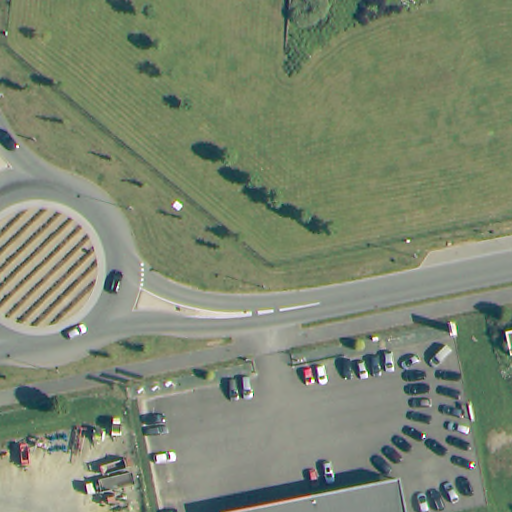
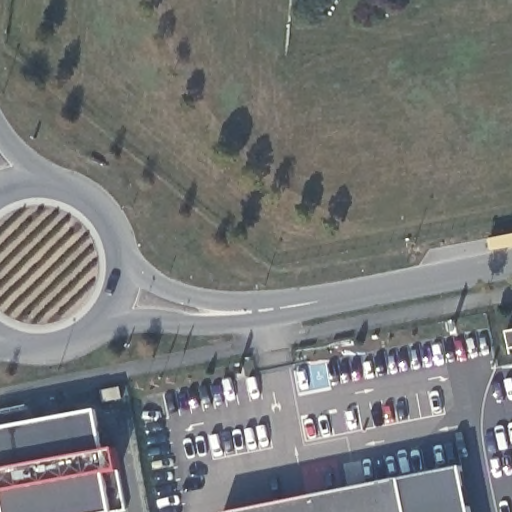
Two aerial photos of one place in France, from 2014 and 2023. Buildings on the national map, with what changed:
unchanged [(512,330),(512,348),(510,349),(506,331),(512,330)]
new [(116,447),(120,472),(104,475),(111,512),(4,512),(0,495),(0,429),(95,412),(104,451),(116,447)]
new [(402,481),(462,467),(471,512),(408,512),(402,481)]
unchanged [(402,481),(408,512),(248,512),(402,481)]

